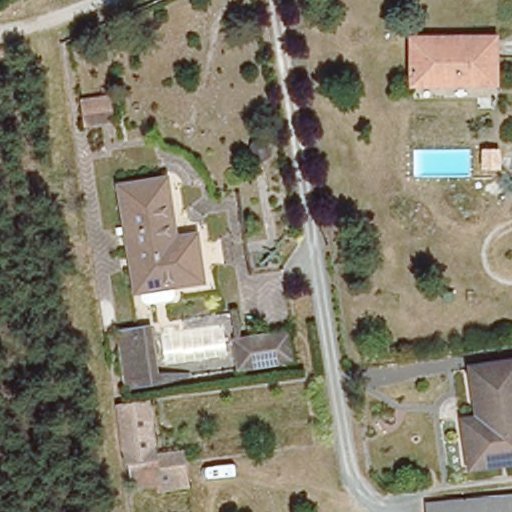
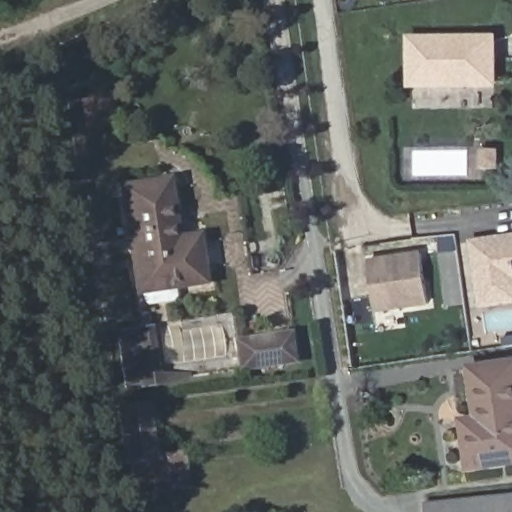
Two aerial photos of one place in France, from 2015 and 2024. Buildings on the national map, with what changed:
unchanged [(495,33),(496,78),(414,79),(413,34),(495,33)]
unchanged [(109,92),(113,116),(88,120),(84,96),(109,92)]
unchanged [(268,140),(273,148),(271,157),(264,162),(254,160),(250,153),(251,144),(259,138),(268,140)]
unchanged [(203,275),(137,286),(121,181),(167,174),(176,235),(197,232),(198,241),(203,275)]
new [(512,301),(479,305),(470,240),(512,235),(512,301)]
new [(420,252),(427,303),(376,310),(369,259),(420,252)]
unchanged [(190,367),(190,372),(125,383),(116,325),(152,319),(160,367),(190,367)]
unchanged [(241,335),(295,327),(299,356),(245,363),(241,335)]
unchanged [(512,359),(512,456),(477,461),(473,431),(471,416),(485,414),(478,364),(512,359)]
unchanged [(149,403),(157,455),(185,451),(191,489),(158,494),(157,490),(127,494),(116,409),(149,403)]
unchanged [(512,497),(512,512),(427,512),(426,508),(512,497)]

